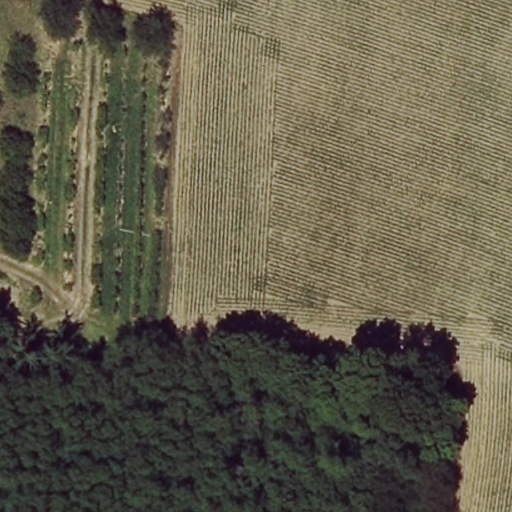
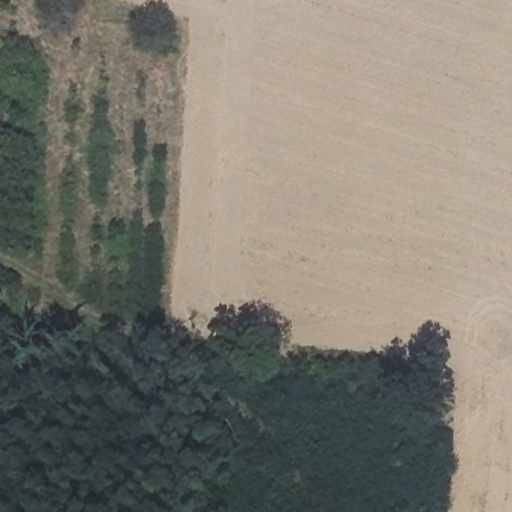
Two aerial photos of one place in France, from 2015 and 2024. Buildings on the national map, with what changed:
[]

